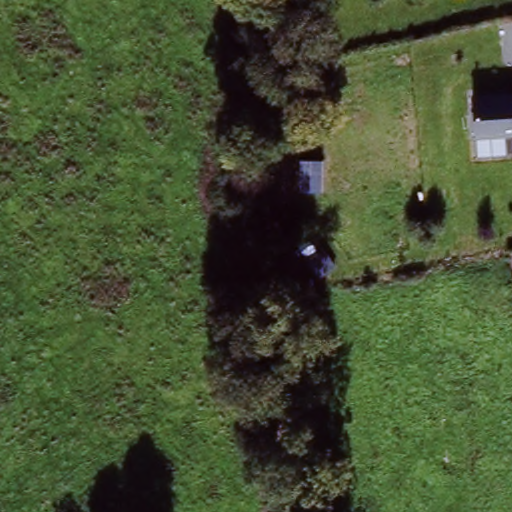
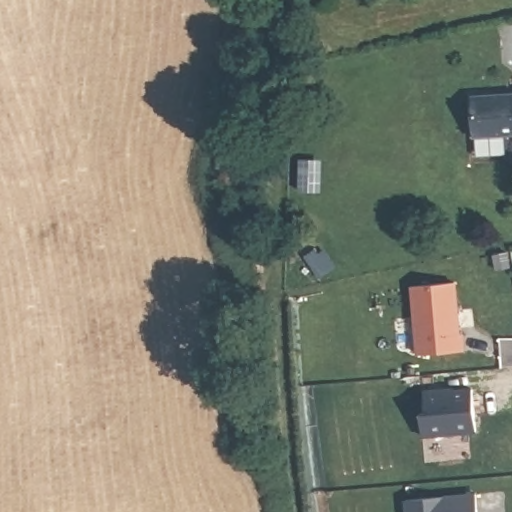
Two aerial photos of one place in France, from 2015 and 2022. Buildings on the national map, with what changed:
unchanged [(475,97),(512,95),(512,136),(477,138),(475,97)]
new [(458,279),(467,352),(417,356),(410,287),(458,279)]
new [(455,388),(457,391),(472,388),(475,432),(422,438),(420,417),(427,416),(425,392),(455,388)]

